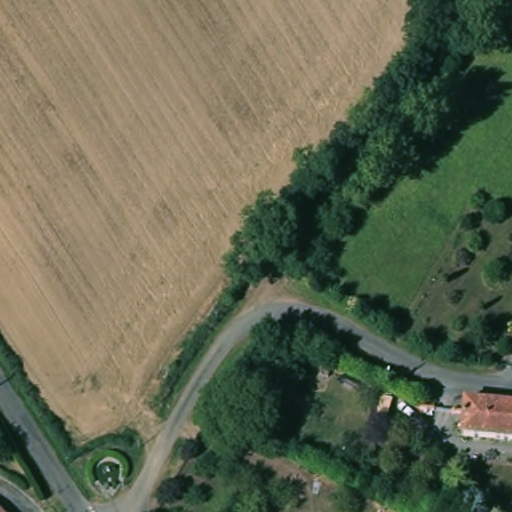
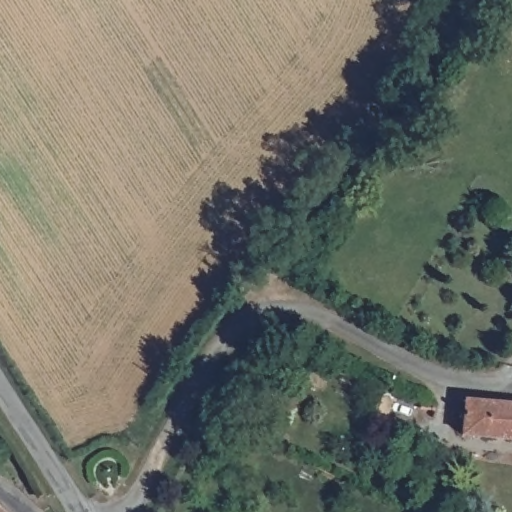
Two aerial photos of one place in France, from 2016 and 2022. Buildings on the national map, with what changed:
unchanged [(468,399),(512,404),(512,438),(465,433),(468,399)]
unchanged [(0,512),(0,504),(9,512),(0,512)]

